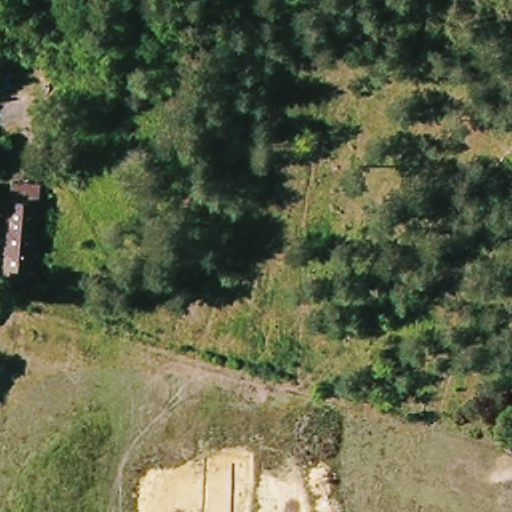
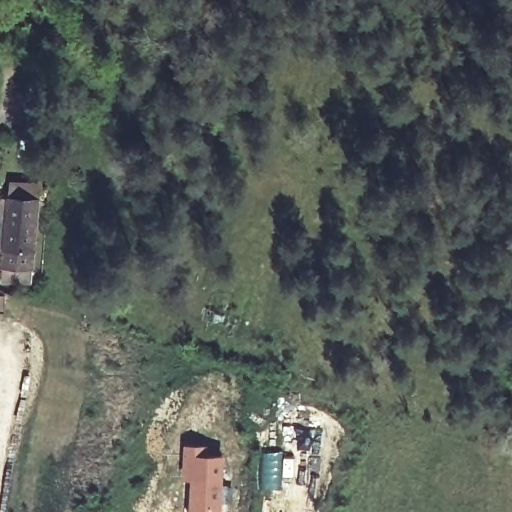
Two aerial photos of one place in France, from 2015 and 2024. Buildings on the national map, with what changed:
unchanged [(27,263),(0,260),(0,254),(12,185),(40,190),(27,263)]
new [(208,444),(208,452),(225,454),(222,512),(188,512),(189,481),(179,481),(182,442),(208,444)]

